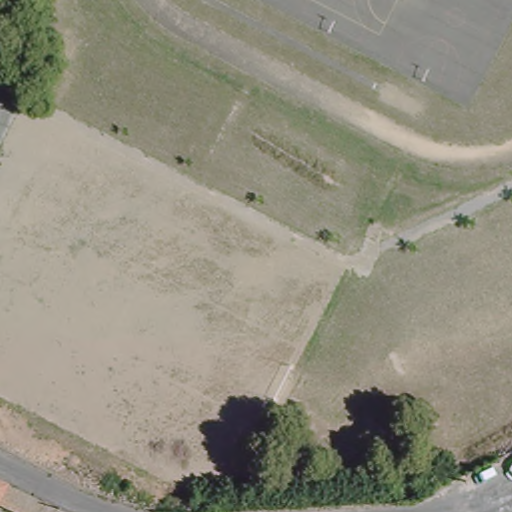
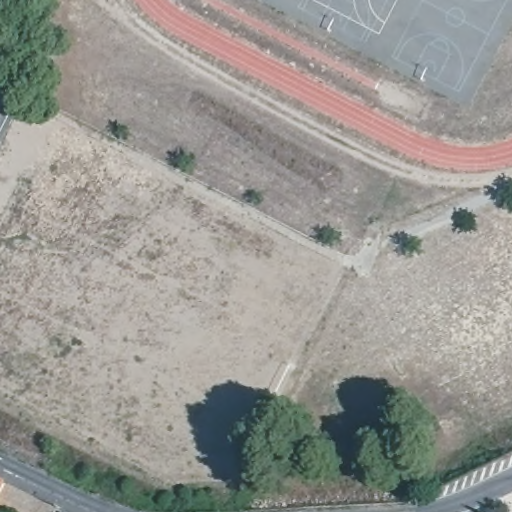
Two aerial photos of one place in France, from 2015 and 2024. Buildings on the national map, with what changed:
unchanged [(0,490),(0,486),(1,487),(0,490)]
unchanged [(51,511),(50,512),(8,512),(0,508),(0,490),(1,487),(51,511)]

